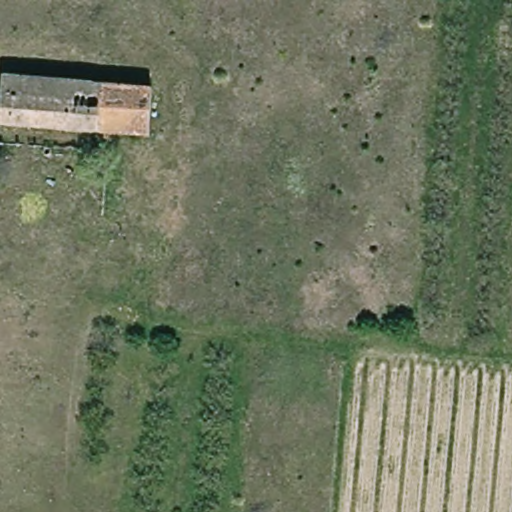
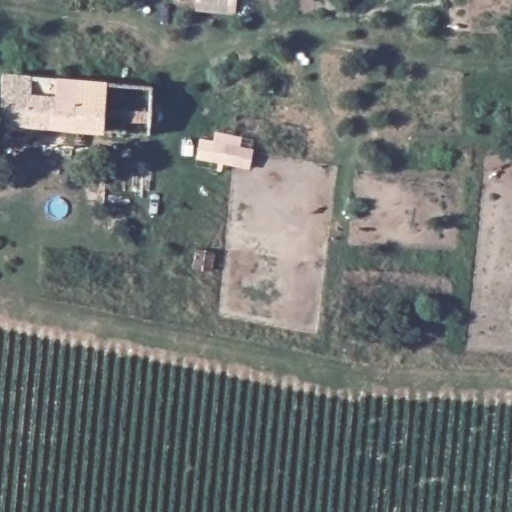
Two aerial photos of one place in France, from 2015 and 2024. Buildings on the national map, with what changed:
new [(195,13),(195,0),(237,0),(236,15),(195,13)]
unchanged [(0,119),(5,79),(108,89),(104,135),(0,123),(0,119)]
unchanged [(154,94),(151,140),(104,135),(108,89),(154,94)]
new [(224,165),(222,171),(218,170),(219,164),(204,161),(208,140),(214,141),(216,131),(245,137),(243,146),(254,148),(250,170),(224,165)]

